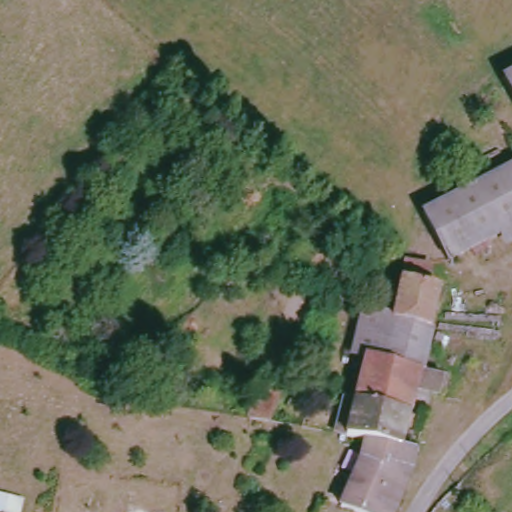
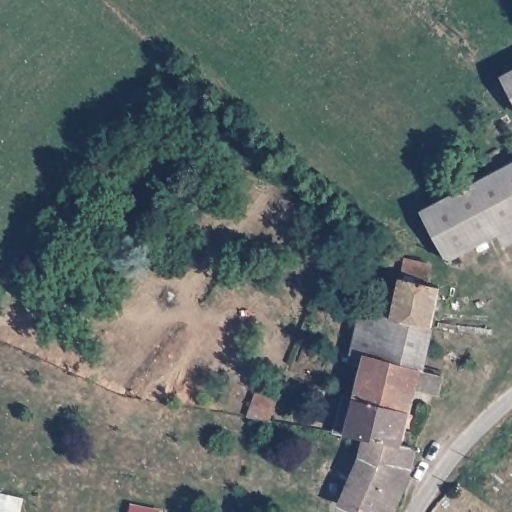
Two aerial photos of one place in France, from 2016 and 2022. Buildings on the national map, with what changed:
unchanged [(512,65),(512,92),(500,70),(512,65)]
unchanged [(512,230),(484,243),(454,192),(512,161),(512,230)]
unchanged [(484,243),(450,260),(421,210),(454,192),(484,243)]
unchanged [(404,291),(406,279),(399,277),(403,260),(428,263),(429,284),(442,287),(433,326),(391,316),(397,290),(404,291)]
unchanged [(330,433),(340,393),(352,397),(362,358),(350,354),(362,308),(376,313),(391,316),(433,326),(422,370),(439,375),(435,394),(417,390),(400,447),(364,439),(330,433)]
unchanged [(253,386),(275,390),(269,421),(247,416),(253,386)]
unchanged [(359,512),(341,504),(364,439),(400,447),(418,453),(410,474),(402,497),(396,512),(359,512)]

